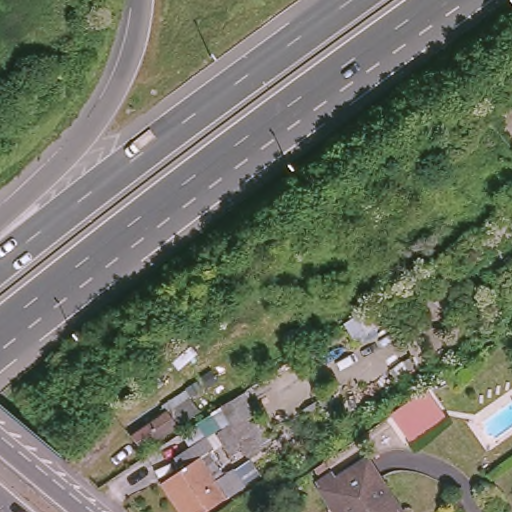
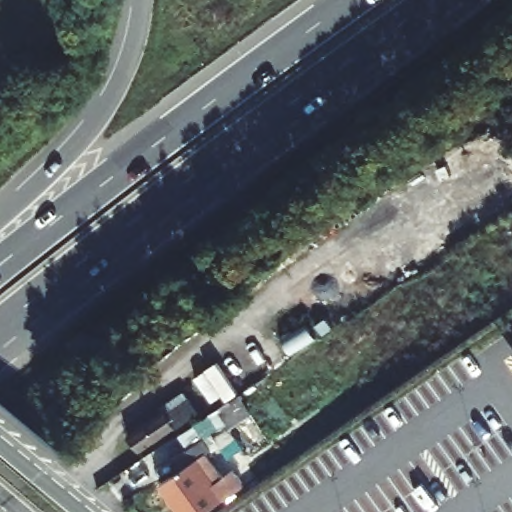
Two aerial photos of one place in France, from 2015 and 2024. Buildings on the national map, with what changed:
new [(509,350),(512,347),(512,354),(509,350)]
demolished [(445,417),(409,442),(392,416),(427,391),(445,417)]
unchanged [(147,450),(135,433),(187,397),(198,415),(147,450)]
unchanged [(267,446),(252,456),(246,446),(232,454),(218,431),(247,413),(267,446)]
unchanged [(216,447),(201,457),(218,482),(238,468),(248,485),(208,512),(188,512),(166,480),(185,468),(177,456),(208,435),(216,447)]
demolished [(335,477),(365,458),(400,512),(336,512),(316,482),(331,472),(335,477)]

